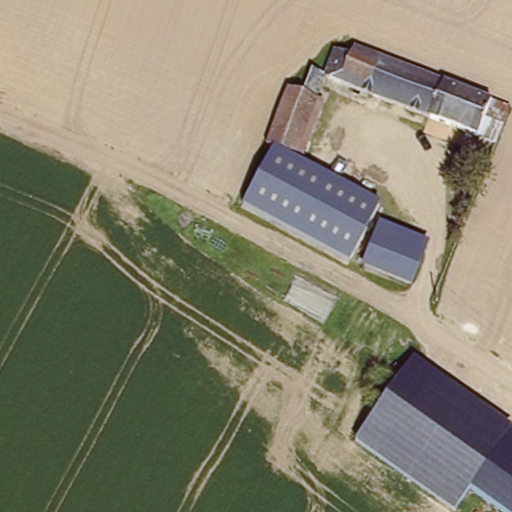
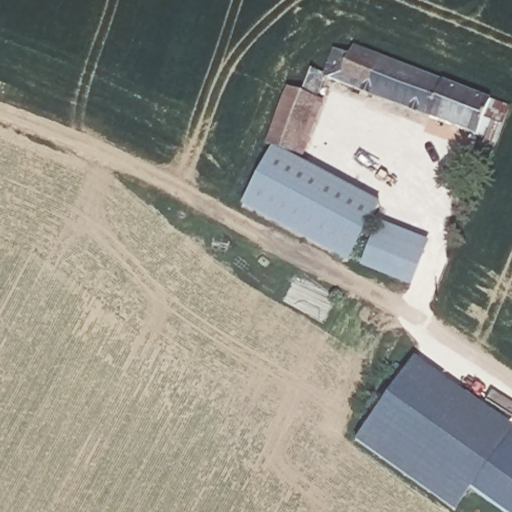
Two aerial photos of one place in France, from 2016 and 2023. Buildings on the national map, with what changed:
unchanged [(342,47),(359,53),(512,109),(512,125),(505,145),(330,82),(342,47)]
unchanged [(274,146),(292,97),(309,102),(317,77),(330,82),(304,164),(299,162),(272,150),(267,148),(274,146)]
unchanged [(299,162),(298,163),(380,203),(349,262),(247,207),(272,150),(299,162)]
unchanged [(428,244),(410,288),(364,270),(384,225),(428,244)]
unchanged [(512,427),(512,512),(498,512),(470,491),(455,512),(355,444),(415,355),(512,427)]

